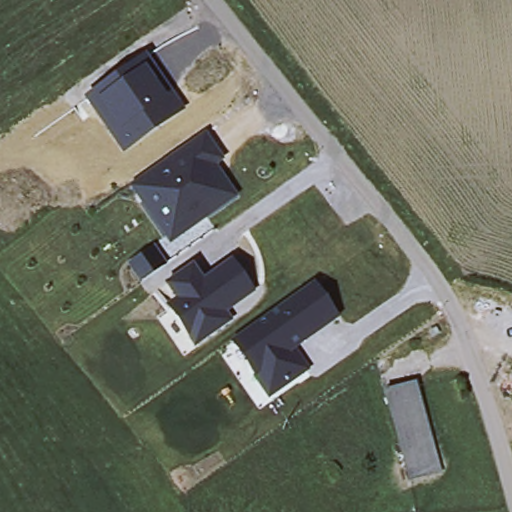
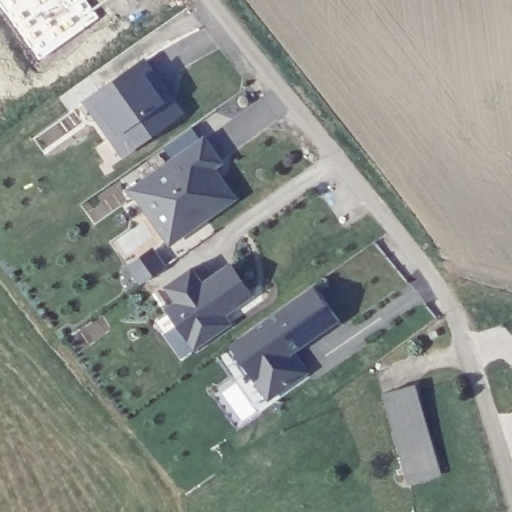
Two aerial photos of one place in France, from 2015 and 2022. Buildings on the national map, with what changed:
new [(74,0),(87,0),(100,18),(38,64),(0,7),(0,0),(70,0),(72,2),(74,0)]
unchanged [(145,55),(182,111),(126,146),(86,95),(145,55)]
unchanged [(158,227),(133,190),(205,140),(220,163),(212,169),(234,199),(200,224),(170,244),(158,227)]
new [(164,270),(142,285),(130,269),(152,252),(164,270)]
unchanged [(253,296),(227,314),(232,325),(192,352),(163,310),(175,301),(165,287),(196,266),(206,280),(230,264),(253,296)]
unchanged [(337,320),(292,352),(305,372),(267,397),(256,378),(253,380),(230,343),(312,287),(337,320)]
unchanged [(414,387),(436,466),(406,474),(383,395),(414,387)]

